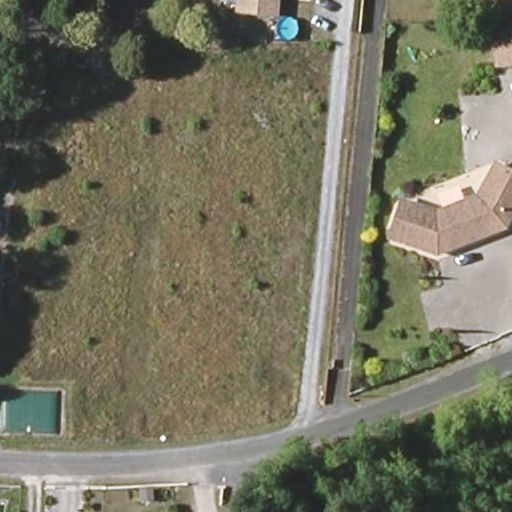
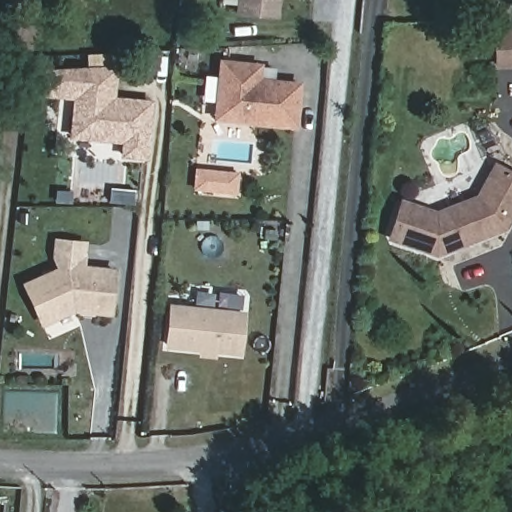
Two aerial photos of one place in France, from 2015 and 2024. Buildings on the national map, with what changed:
unchanged [(276,15),(239,10),(240,0),(277,0),(276,15)]
unchanged [(494,63),(493,31),(512,31),(512,63),(494,63)]
new [(216,60),(254,64),(253,76),(294,81),(289,124),(248,119),(211,116),(213,101),(216,60)]
new [(42,69),(111,67),(108,98),(147,101),(142,155),(120,153),(121,139),(69,134),(72,95),(41,92),(42,69)]
unchanged [(436,253),(389,236),(401,200),(435,212),(477,197),(495,165),(512,174),(512,213),(504,228),(436,253)]
new [(31,305),(21,282),(63,264),(110,269),(106,311),(70,307),(51,316),(39,322),(31,305)]
new [(166,305),(239,312),(235,351),(163,344),(166,305)]

